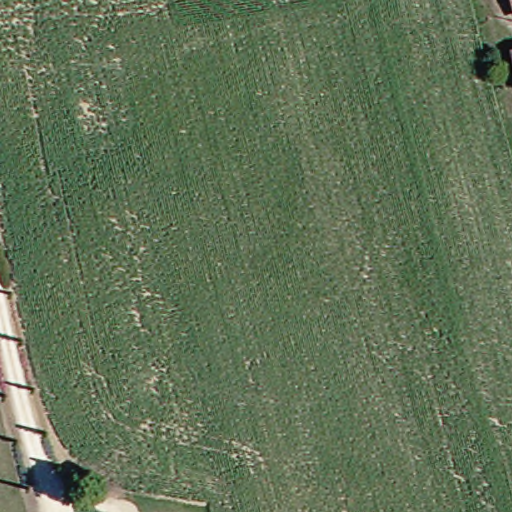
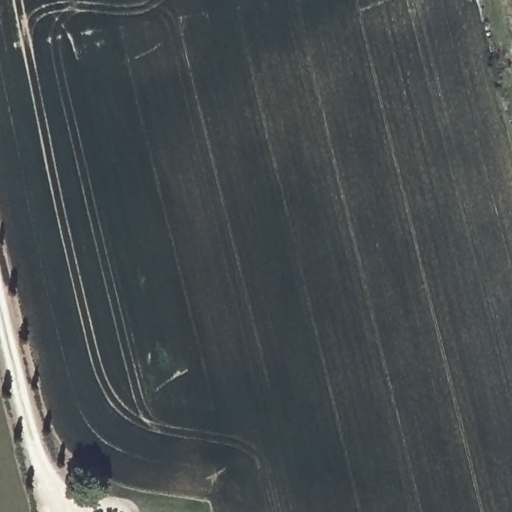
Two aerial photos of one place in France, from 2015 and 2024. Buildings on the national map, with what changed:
unchanged [(508,20),(505,0),(512,0),(512,19),(508,20)]
unchanged [(504,50),(512,48),(512,77),(504,50)]

